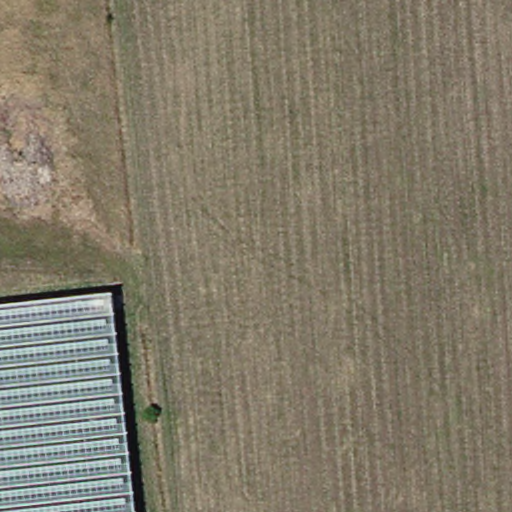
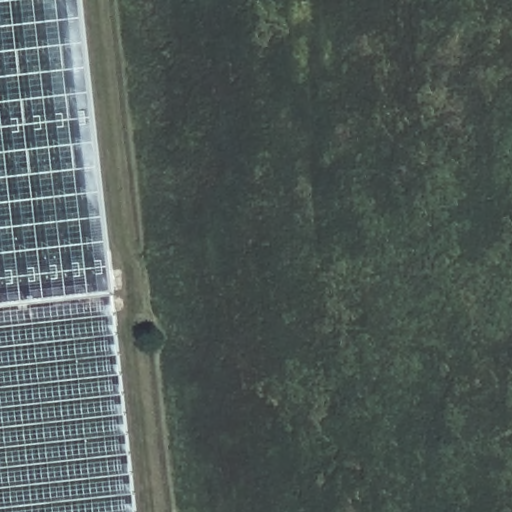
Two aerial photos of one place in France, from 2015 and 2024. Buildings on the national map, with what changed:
new [(0,311),(0,0),(81,0),(110,299),(0,311)]
unchanged [(110,299),(134,512),(0,512),(0,311),(110,299)]

